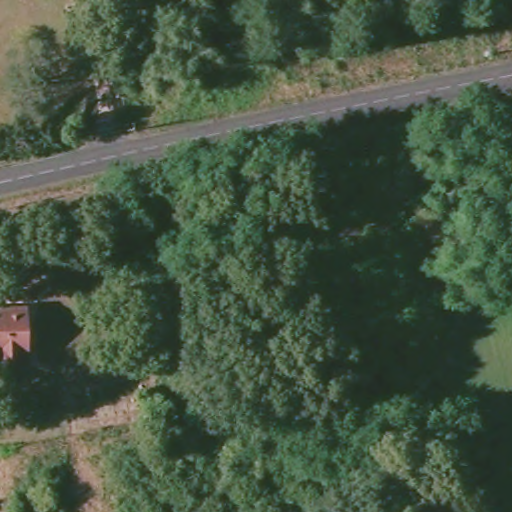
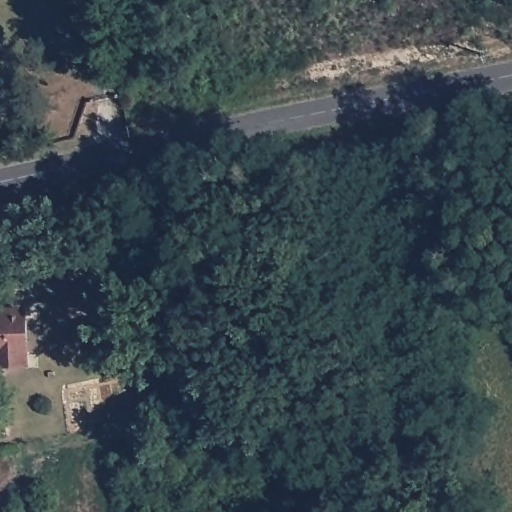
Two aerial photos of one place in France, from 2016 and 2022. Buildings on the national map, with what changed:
unchanged [(28,356),(29,368),(0,371),(0,310),(24,308),(28,356)]
unchanged [(131,378),(146,376),(151,402),(136,405),(131,378)]

